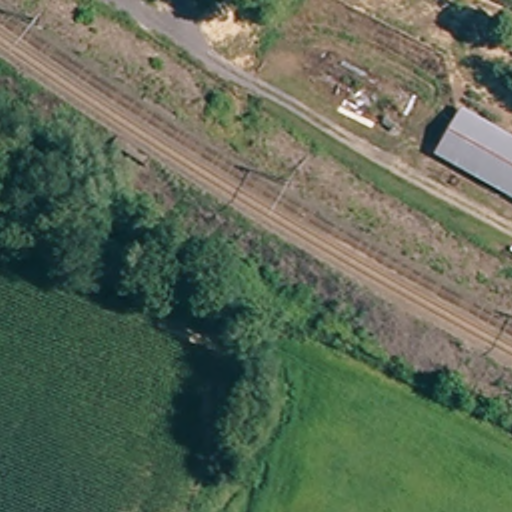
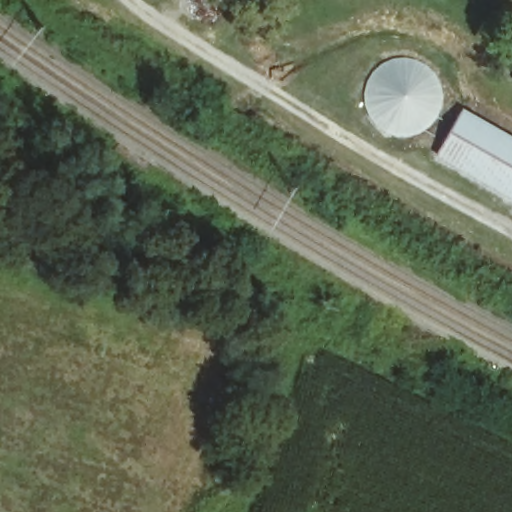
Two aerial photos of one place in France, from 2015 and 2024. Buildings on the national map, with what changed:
new [(423,63),(431,67),(436,74),(442,85),(443,100),(441,110),(433,123),(427,130),(418,134),(402,136),(390,133),(380,129),(372,120),(365,106),(363,92),(368,76),(377,66),(393,57),(405,56),(416,59),(423,63)]
unchanged [(461,111),(512,141),(512,195),(437,151),(461,111)]

